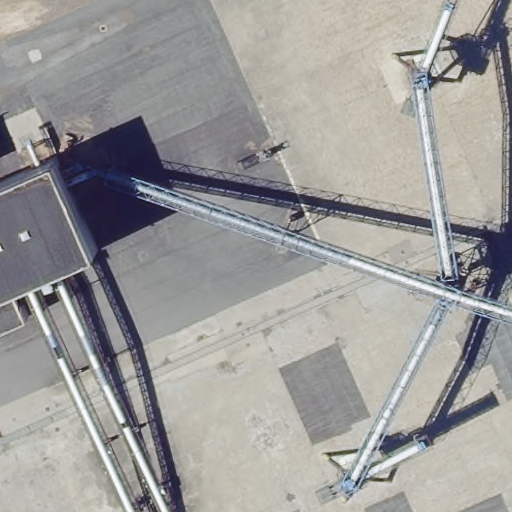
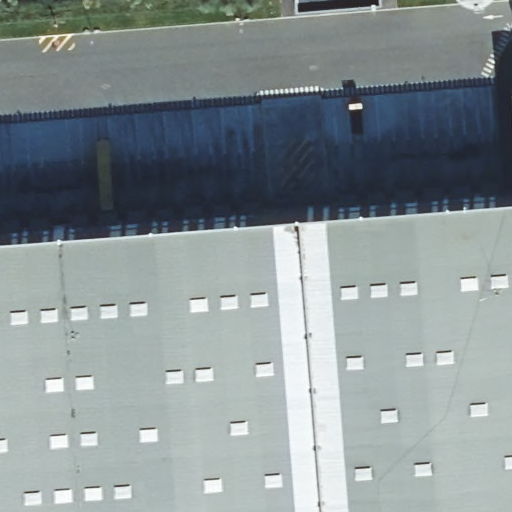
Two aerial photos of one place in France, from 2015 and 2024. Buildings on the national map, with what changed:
new [(293,12),(291,0),(375,0),(375,4),(293,12)]
new [(512,92),(512,165),(505,92),(512,92)]
demolished [(64,171),(97,265),(28,290),(10,273),(0,280),(0,195),(64,171)]
new [(512,199),(512,512),(0,512),(0,240),(512,199)]
demolished [(10,273),(28,290),(13,296),(23,325),(0,333),(0,280),(10,273)]

